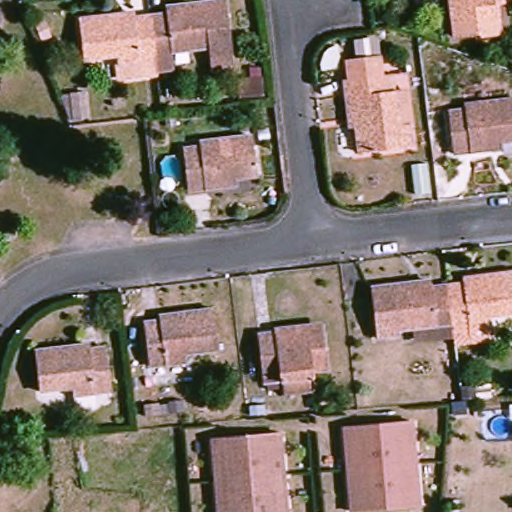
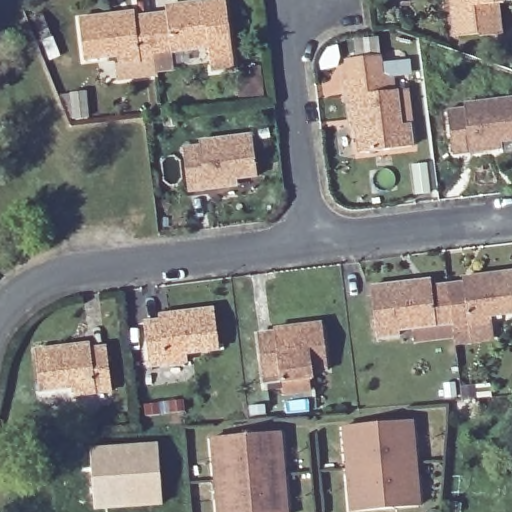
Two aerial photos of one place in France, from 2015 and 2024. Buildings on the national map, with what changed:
unchanged [(176,0),(225,0),(231,63),(208,65),(206,49),(155,54),(151,15),(178,12),(176,0)]
unchanged [(499,31),(473,34),(472,31),(456,31),(454,3),(448,4),(448,0),(506,0),(506,3),(497,4),(499,31)]
unchanged [(122,68),(121,59),(92,63),(87,16),(132,11),(132,16),(151,15),(155,54),(156,64),(122,68)]
unchanged [(409,125),(405,126),(408,150),(360,154),(355,99),(346,98),(344,82),(351,82),(349,61),(383,59),(385,80),(393,80),(394,97),(407,97),(409,125)]
unchanged [(261,88),(231,89),(231,71),(260,70),(261,88)]
unchanged [(494,153),(457,156),(453,114),(472,113),(471,106),(512,103),(512,143),(494,144),(494,153)]
unchanged [(254,172),(225,176),(225,183),(193,186),(188,148),(204,146),(203,139),(252,135),(254,172)]
unchanged [(483,277),(512,272),(512,312),(489,315),(489,325),(460,328),(459,318),(454,285),(483,282),(483,277)]
unchanged [(459,318),(409,324),(410,332),(386,335),(386,326),(378,326),(375,287),(429,281),(430,287),(454,285),(459,318)]
unchanged [(213,350),(182,353),(182,365),(152,368),(146,326),(173,322),(171,316),(211,311),(213,350)]
unchanged [(283,399),(280,385),(265,387),(260,338),(274,337),(274,329),(298,328),(298,333),(319,332),(322,372),(312,374),(313,381),(305,382),(307,395),(283,399)]
unchanged [(103,394),(80,396),(80,390),(41,394),(37,356),(100,350),(103,394)]
unchanged [(417,506),(350,512),(342,427),(409,421),(417,506)]
unchanged [(285,512),(217,512),(210,440),(277,433),(285,512)]
new [(155,445),(159,504),(92,510),(87,450),(155,445)]

